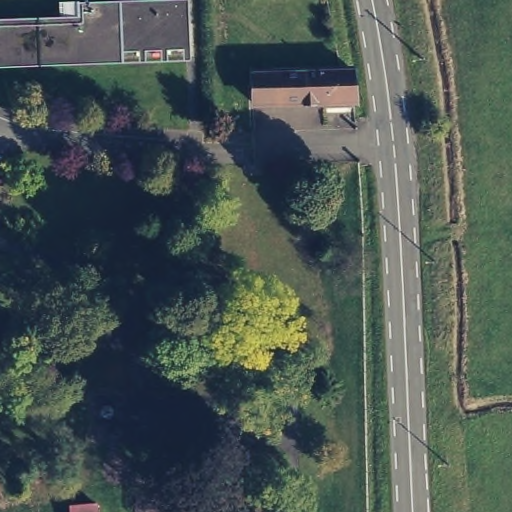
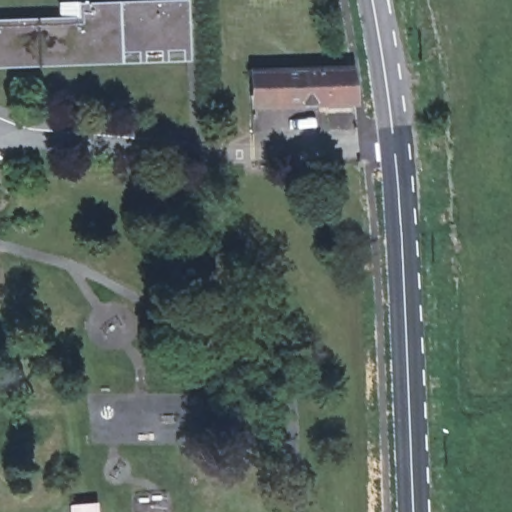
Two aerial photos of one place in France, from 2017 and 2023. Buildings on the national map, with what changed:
unchanged [(59,24),(58,10),(78,9),(78,10),(182,7),(183,56),(137,57),(136,52),(120,52),(120,65),(0,67),(0,25),(59,24)]
unchanged [(245,109),(244,76),(337,74),(347,73),(350,106),(245,109)]
unchanged [(98,512),(71,512),(71,507),(97,504),(98,512)]

